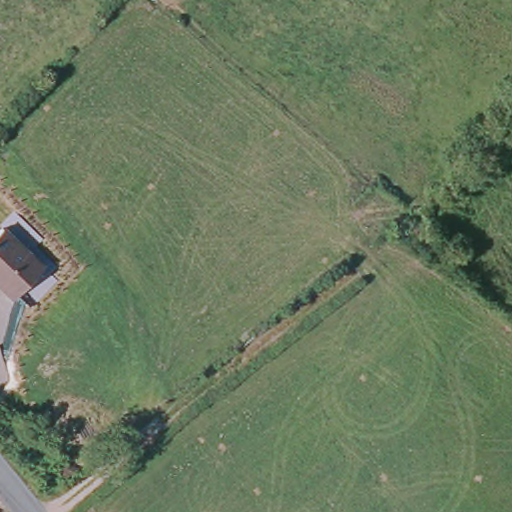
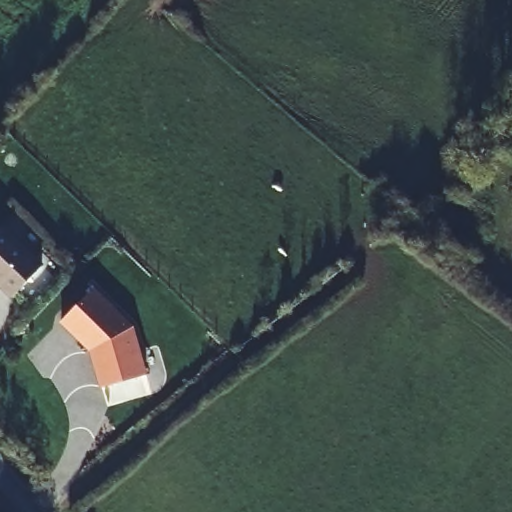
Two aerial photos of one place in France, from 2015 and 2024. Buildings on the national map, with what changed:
unchanged [(7,296),(0,289),(0,222),(42,264),(7,296)]
new [(98,288),(137,325),(152,373),(109,386),(97,350),(67,321),(98,288)]

